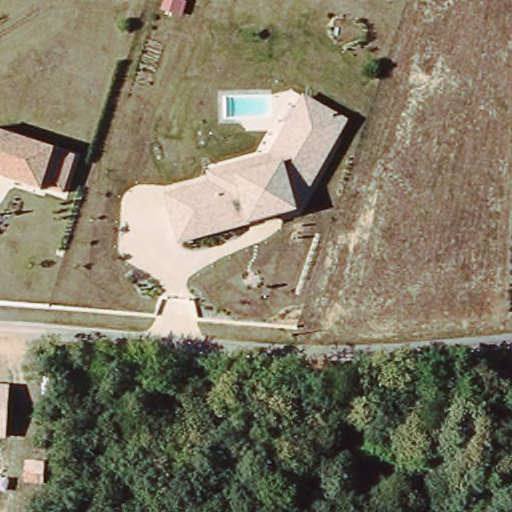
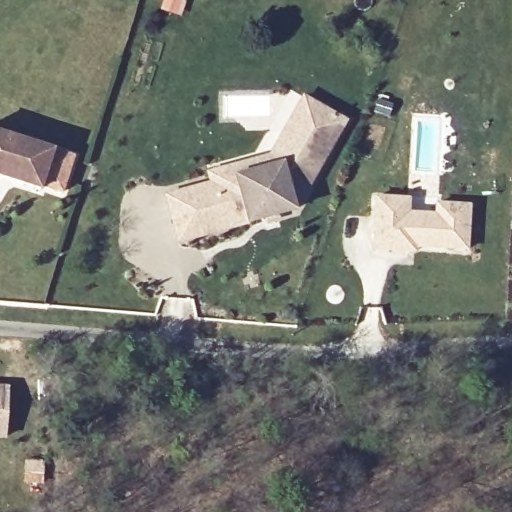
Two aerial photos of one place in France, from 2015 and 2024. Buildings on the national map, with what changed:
unchanged [(348,121),(297,210),(247,224),(176,243),(164,194),(210,181),(207,169),(267,153),(300,95),(348,121)]
unchanged [(55,147),(75,155),(64,189),(43,182),(40,192),(0,178),(0,130),(55,147)]
new [(410,199),(409,211),(436,213),(437,204),(470,206),(467,248),(417,245),(416,251),(373,247),(376,197),(410,199)]
unchanged [(10,386),(6,438),(0,438),(0,385),(10,386)]

